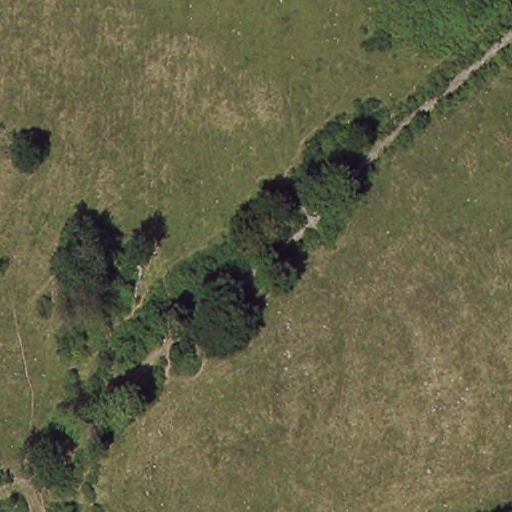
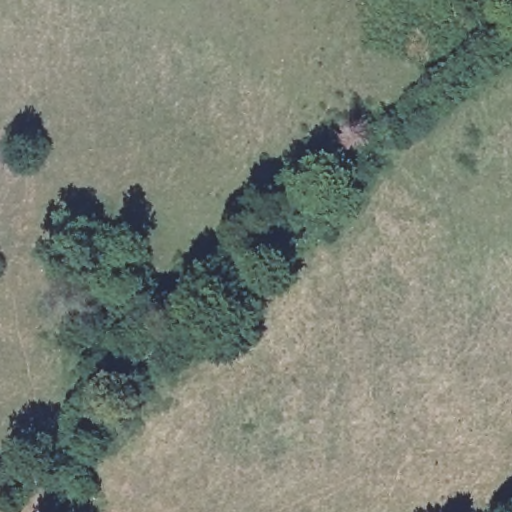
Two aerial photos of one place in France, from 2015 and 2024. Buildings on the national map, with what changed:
unchanged [(150,260),(145,302),(95,297),(100,254),(150,260)]

